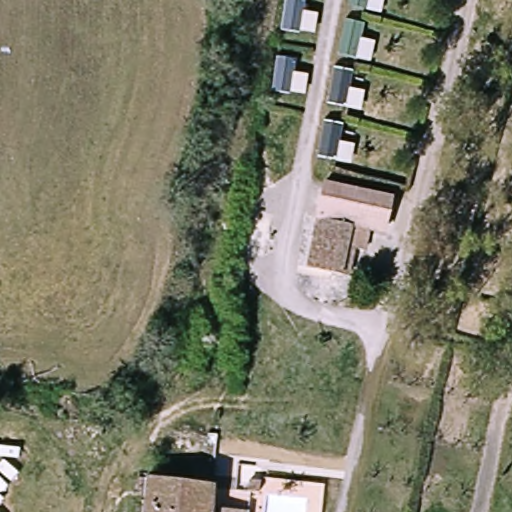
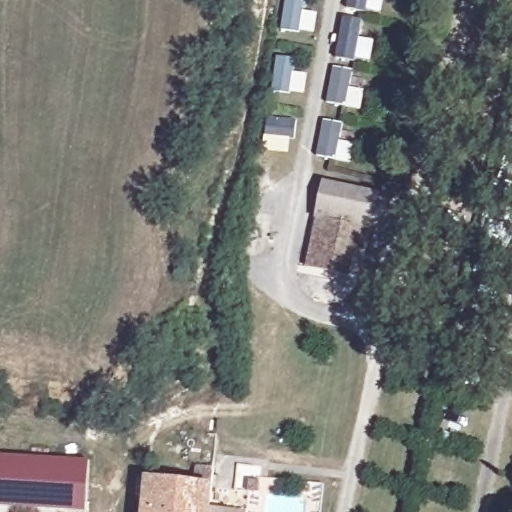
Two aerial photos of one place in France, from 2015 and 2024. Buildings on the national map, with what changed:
unchanged [(301,263),(313,213),(321,216),(328,183),(394,196),(387,230),(364,226),(361,246),(351,246),(344,273),(301,263)]
new [(85,511),(0,506),(0,454),(88,459),(85,511)]
unchanged [(192,463),(210,466),(206,485),(203,512),(137,512),(141,479),(189,484),(192,463)]

